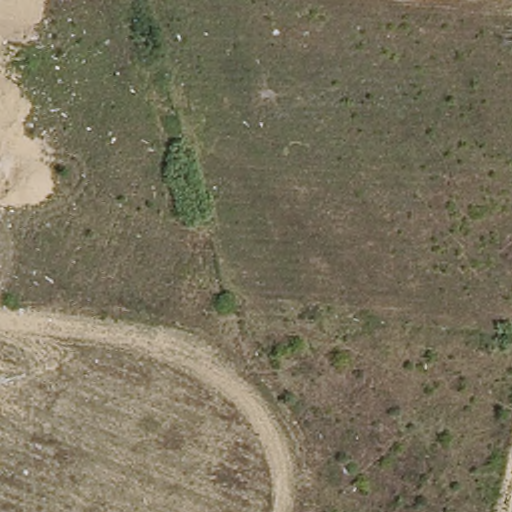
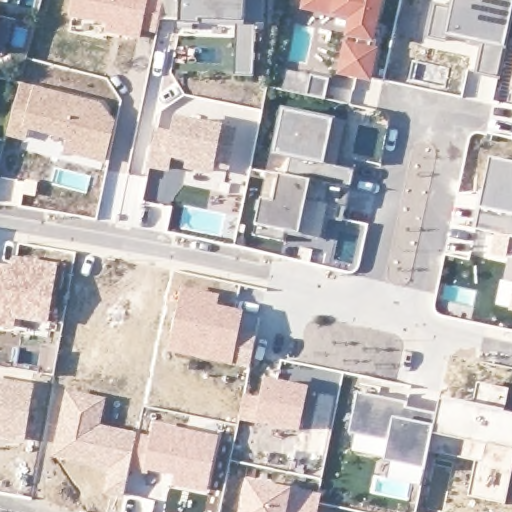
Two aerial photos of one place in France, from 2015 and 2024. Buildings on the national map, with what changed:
new [(157,36),(143,32),(141,41),(105,34),(107,25),(69,19),(73,0),(163,0),(160,20),(157,36)]
new [(256,22),(253,76),(235,75),(237,25),(179,23),(180,21),(160,20),(163,0),(265,0),(264,23),(256,22)]
new [(348,19),(333,16),(301,8),(302,0),(382,0),(374,43),(373,49),(377,50),(369,81),(338,74),(344,42),(345,37),(348,19)]
new [(475,72),(479,41),(445,35),(444,39),(426,36),(433,3),(450,6),(451,0),(512,0),(512,13),(505,49),(499,77),(475,72)]
new [(512,81),(512,88),(510,88),(512,81)]
new [(64,152),(67,141),(30,129),(25,140),(8,136),(21,83),(101,104),(116,122),(105,162),(64,152)]
new [(348,119),(338,166),(354,167),(349,190),(310,181),(284,176),(290,154),(274,151),(283,110),(348,119)]
new [(155,126),(169,130),(173,114),(226,125),(214,175),(182,170),(183,164),(172,162),(169,174),(147,169),(155,126)]
new [(487,157),(512,163),(512,239),(510,239),(490,235),(474,231),(479,197),(487,157)]
new [(298,234),(286,231),(283,241),(253,234),(255,225),(261,199),(273,201),(276,192),(263,189),(267,172),(279,175),(284,176),(310,181),(349,190),(345,207),(339,205),(336,217),(326,216),(322,240),(298,234)]
new [(11,263),(13,255),(60,262),(49,325),(17,321),(15,329),(0,326),(0,262),(11,263)]
new [(512,311),(507,310),(512,280),(512,311)]
new [(182,286),(221,294),(219,304),(259,313),(249,368),(166,352),(182,286)]
new [(34,384),(24,443),(0,439),(0,378),(34,384)]
new [(243,393),(259,397),(262,378),(309,387),(300,432),(238,421),(243,393)]
new [(440,398),(474,403),(477,383),(509,389),(505,412),(512,414),(512,450),(462,441),(432,436),(437,413),(440,398)]
new [(64,387),(106,397),(101,424),(139,433),(133,460),(123,498),(103,494),(107,473),(50,457),(64,387)]
new [(357,392),(407,400),(405,407),(437,413),(432,436),(424,471),(390,462),(383,460),(387,442),(354,435),(348,433),(357,392)]
new [(139,433),(149,435),(152,421),(219,435),(207,493),(171,487),(173,477),(141,471),(142,462),(133,460),(139,433)]
new [(462,441),(512,450),(512,473),(505,505),(469,497),(475,462),(428,451),(432,436),(462,441)]
new [(244,478),(292,487),(288,512),(238,512),(244,478)]
new [(292,487),(321,493),(317,512),(288,512),(292,487)]

